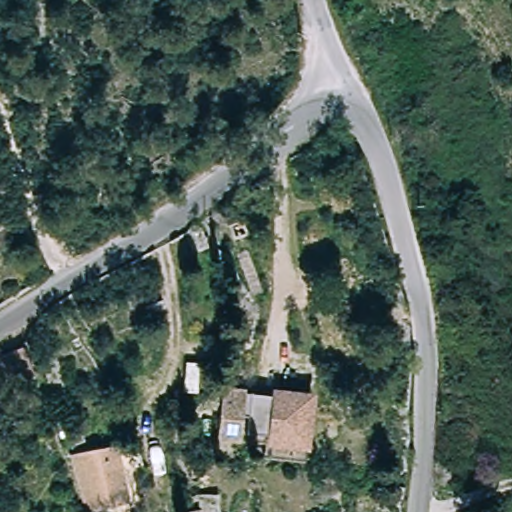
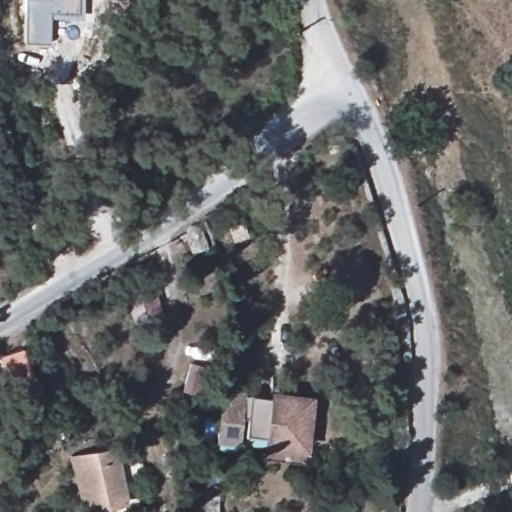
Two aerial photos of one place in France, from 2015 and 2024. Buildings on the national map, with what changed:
new [(78,13),(50,12),(51,44),(25,43),(26,0),(78,0),(78,13)]
unchanged [(242,219),(246,234),(230,239),(226,223),(242,219)]
unchanged [(17,345),(32,367),(13,380),(0,359),(0,355),(17,345)]
unchanged [(243,400),(243,405),(269,406),(269,401),(309,403),(307,450),(267,447),(267,445),(240,444),(240,454),(215,450),(219,397),(243,400)]
unchanged [(115,470),(127,470),(132,487),(120,490),(123,503),(79,510),(70,453),(110,446),(115,470)]
unchanged [(196,512),(183,512),(183,509),(196,507),(196,512)]

